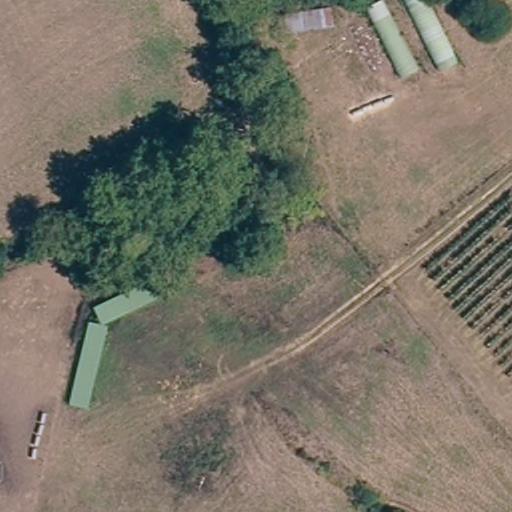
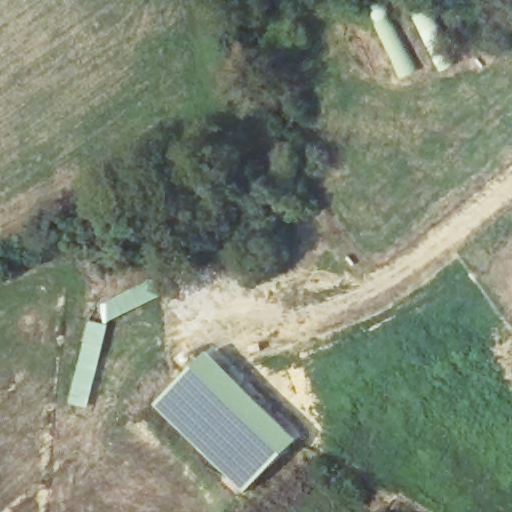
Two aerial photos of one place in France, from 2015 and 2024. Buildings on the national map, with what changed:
unchanged [(384,0),(385,0),(422,69),(405,76),(369,9),(384,0)]
new [(153,406),(204,355),(295,445),(244,495),(153,406)]

